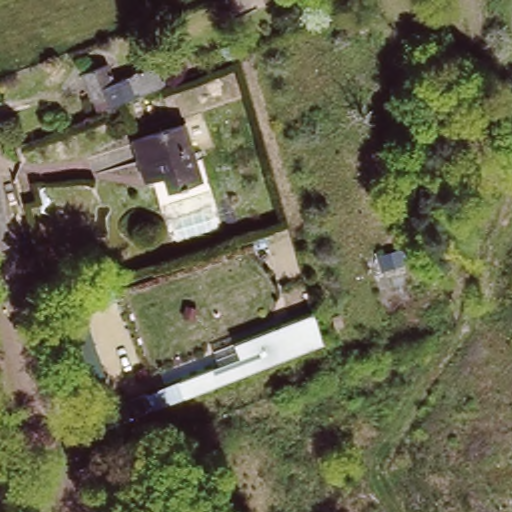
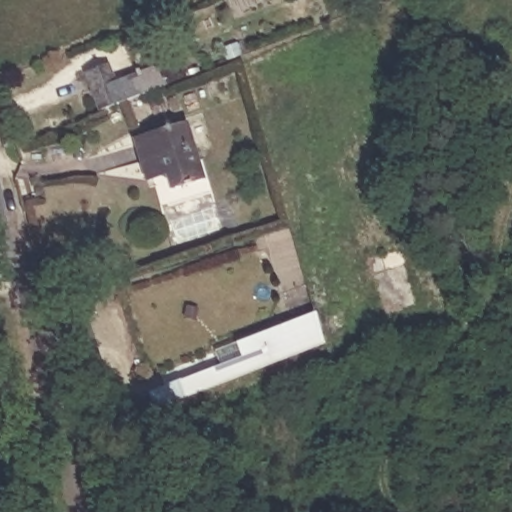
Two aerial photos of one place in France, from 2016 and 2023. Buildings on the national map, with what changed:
unchanged [(163,86),(101,110),(85,75),(110,66),(117,82),(140,75),(145,70),(157,70),(164,85),(163,86)]
unchanged [(150,180),(136,134),(191,117),(209,175),(170,187),(167,175),(150,180)]
unchanged [(184,382),(242,359),(237,345),(320,315),(329,344),(189,399),(184,382)]

